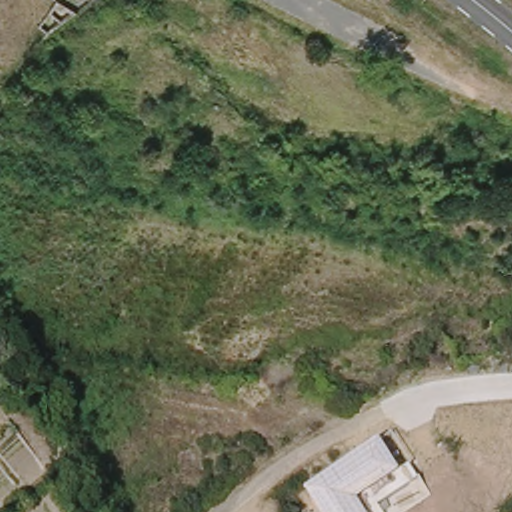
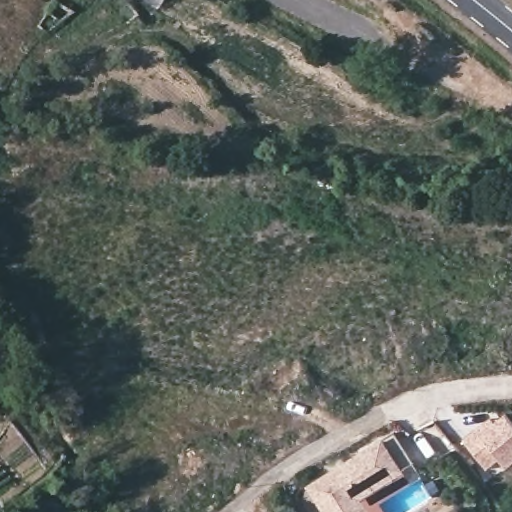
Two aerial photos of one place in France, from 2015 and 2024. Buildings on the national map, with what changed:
new [(500,460),(487,470),(463,441),(477,429),(490,418),(494,423),(505,414),(512,423),(512,462),(505,467),(500,460)]
unchanged [(306,488),(382,441),(400,474),(359,500),(366,512),(321,512),(306,488)]

